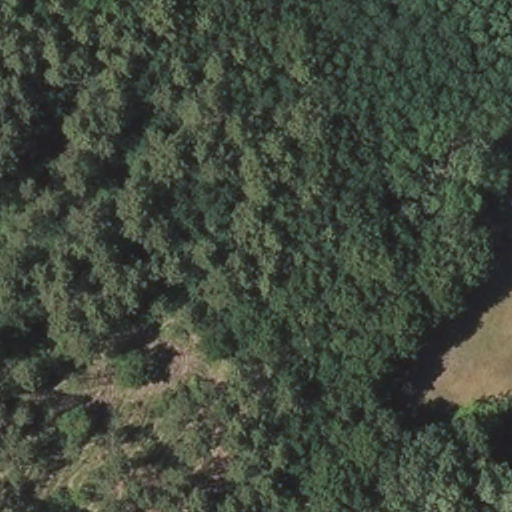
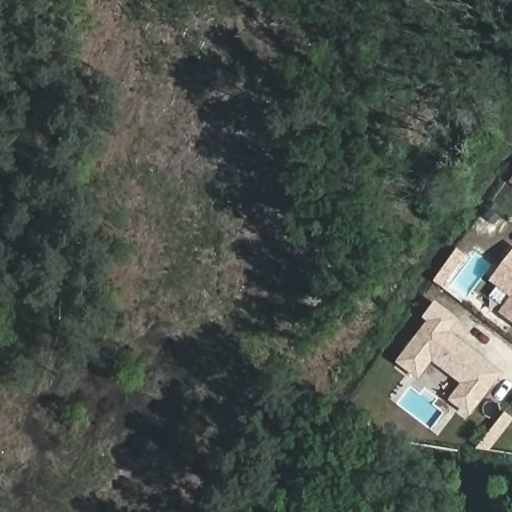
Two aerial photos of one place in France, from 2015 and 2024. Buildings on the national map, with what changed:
new [(499,312),(511,297),(489,281),(512,251),(512,322),(499,312)]
new [(469,416),(448,401),(461,384),(432,362),(418,379),(395,363),(426,322),(422,318),(435,300),(460,321),(451,332),(502,373),(469,416)]

